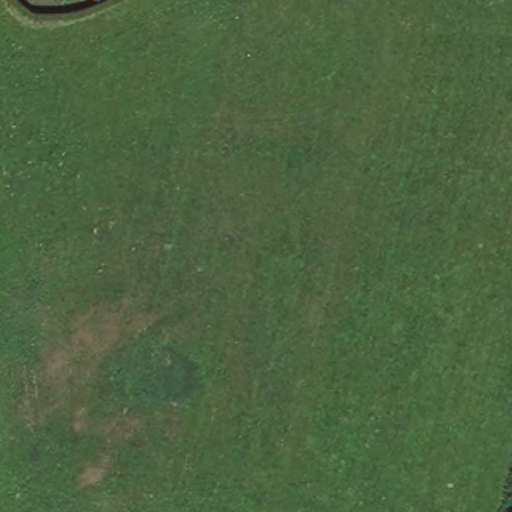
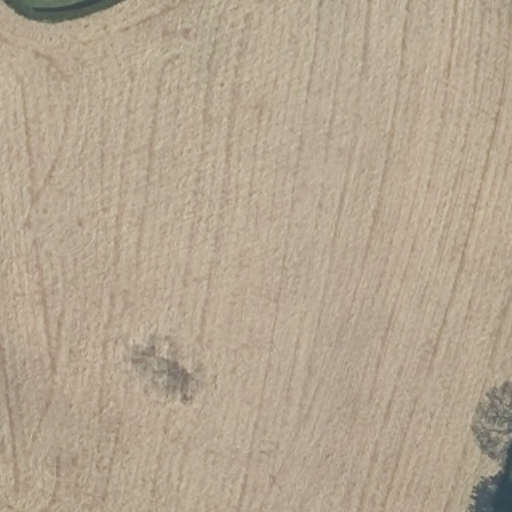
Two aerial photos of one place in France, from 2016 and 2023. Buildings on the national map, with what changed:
[]

